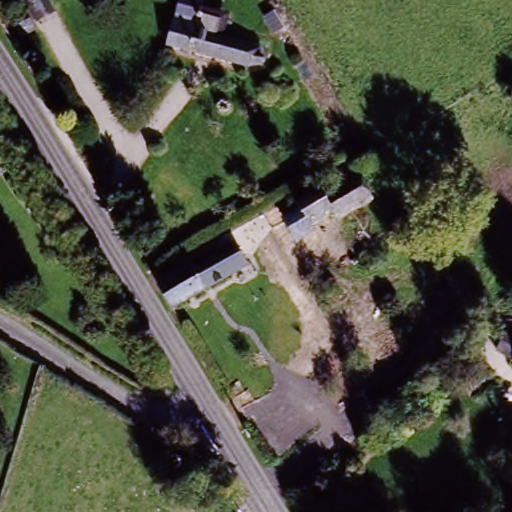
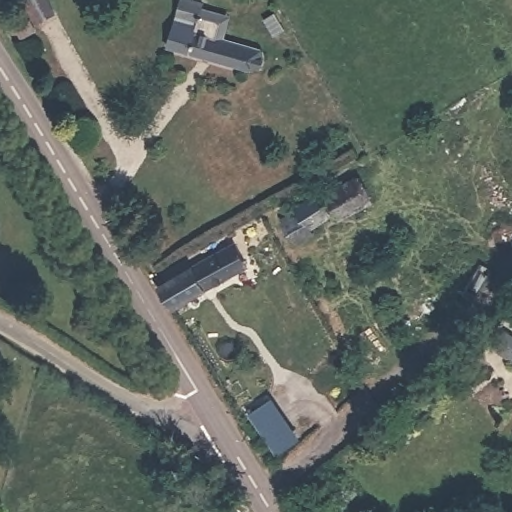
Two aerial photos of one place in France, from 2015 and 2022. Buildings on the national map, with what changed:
unchanged [(34,24),(22,2),(26,0),(41,0),(51,16),(34,24)]
unchanged [(255,71),(242,75),(164,51),(179,0),(184,0),(197,4),(195,10),(217,17),(212,34),(250,48),(262,55),(255,71)]
unchanged [(10,31),(25,23),(32,33),(15,40),(10,31)]
unchanged [(281,221),(290,215),(290,210),(315,193),(319,197),(357,176),(372,203),(337,223),(332,215),(312,229),(315,235),(297,245),(281,221)]
unchanged [(166,310),(154,289),(213,255),(225,275),(166,310)]
unchanged [(510,333),(512,334),(512,356),(501,348),(510,333)]

